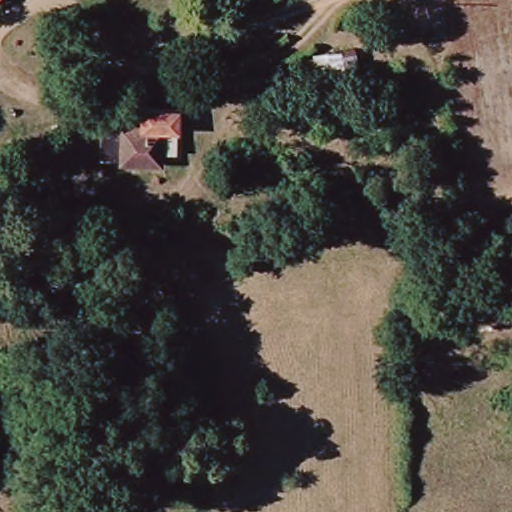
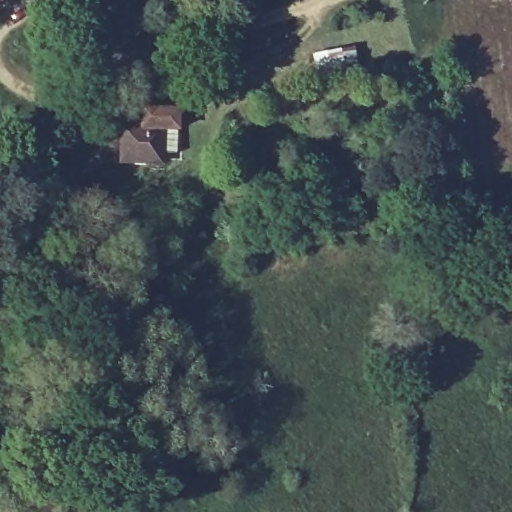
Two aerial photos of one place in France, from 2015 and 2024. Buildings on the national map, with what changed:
unchanged [(311,53),(355,50),(360,77),(318,85),(311,53)]
unchanged [(170,161),(106,165),(105,136),(110,130),(147,127),(145,110),(182,107),(184,125),(185,150),(169,151),(170,161)]
unchanged [(81,252),(37,262),(31,234),(75,223),(81,252)]

